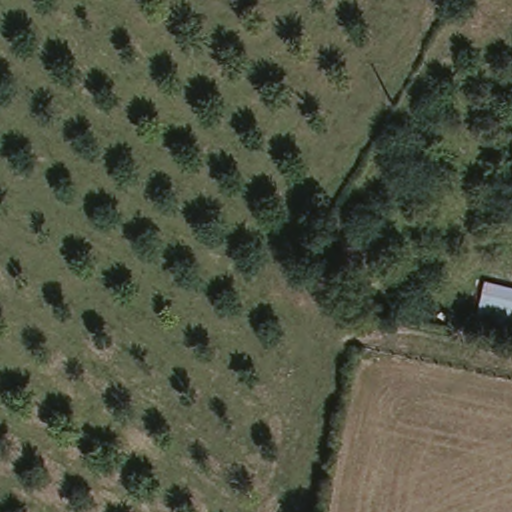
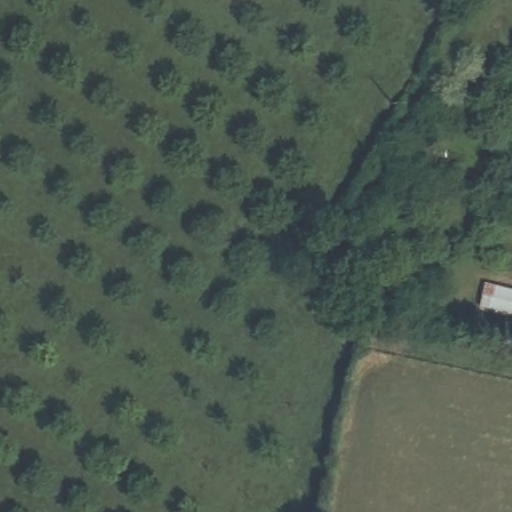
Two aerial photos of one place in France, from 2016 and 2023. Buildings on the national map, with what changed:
unchanged [(476,321),(483,281),(512,288),(512,329),(476,321)]

